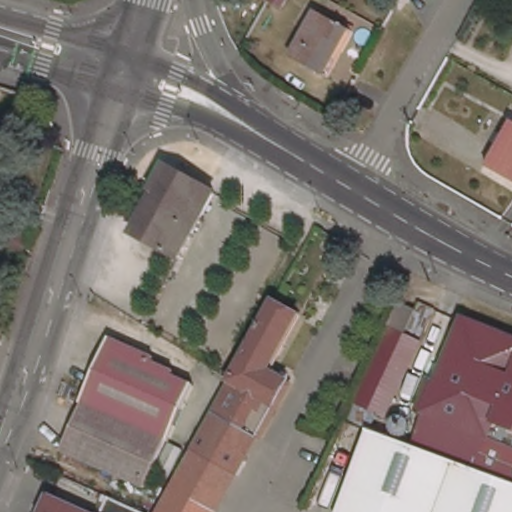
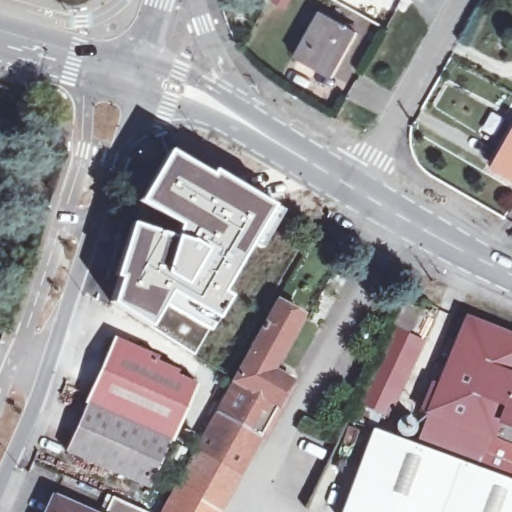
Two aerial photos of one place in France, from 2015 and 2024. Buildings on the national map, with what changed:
unchanged [(295,55),(320,12),(353,29),(329,73),(295,55)]
unchanged [(512,128),(512,179),(491,167),(512,128)]
new [(115,278),(111,277),(129,220),(171,233),(175,225),(135,201),(167,145),(210,168),(211,165),(279,206),(254,248),(252,247),(222,289),(230,294),(207,333),(164,307),(150,328),(107,302),(115,278)]
demolished [(173,168),(217,192),(181,257),(137,233),(173,168)]
unchanged [(401,300),(417,308),(407,329),(391,322),(390,322),(401,300)]
unchanged [(214,512),(157,512),(273,304),(296,317),(266,372),(287,383),(214,512)]
new [(164,307),(207,333),(193,354),(150,328),(164,307)]
unchanged [(492,436),(489,434),(487,434),(430,411),(428,409),(467,315),(512,334),(512,450),(512,451),(490,443),(492,436)]
unchanged [(394,329),(422,342),(388,414),(380,412),(372,428),(349,419),(357,401),(394,329)]
unchanged [(173,439),(170,439),(149,486),(67,448),(89,401),(87,399),(116,334),(159,354),(157,359),(179,369),(177,373),(199,383),(173,439)]
unchanged [(430,411),(487,434),(489,434),(477,467),(417,444),(430,411)]
unchanged [(512,512),(338,512),(372,428),(417,444),(477,467),(512,480),(512,512)]
unchanged [(47,499),(75,512),(40,512),(47,499)]
unchanged [(107,502),(114,504),(129,512),(102,512),(107,502)]

